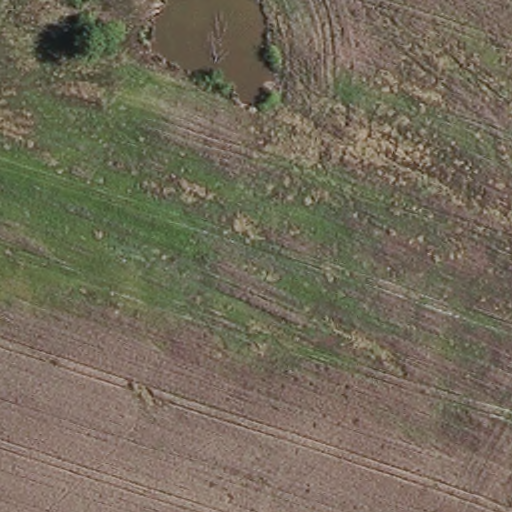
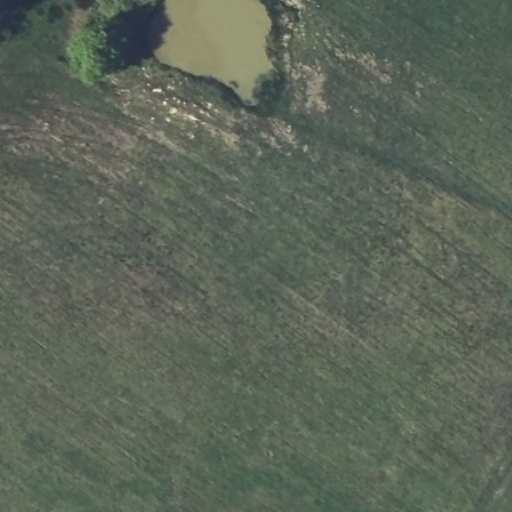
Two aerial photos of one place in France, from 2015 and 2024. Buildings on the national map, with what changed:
[]

